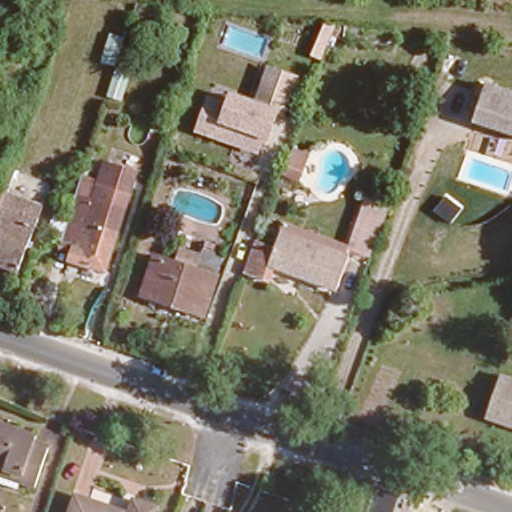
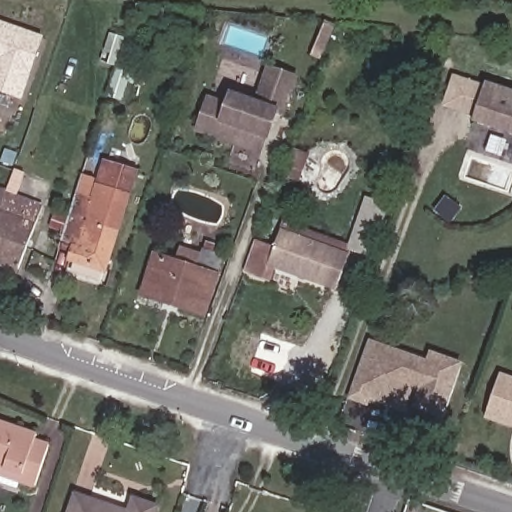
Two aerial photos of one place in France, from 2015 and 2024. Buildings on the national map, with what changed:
new [(45,36),(22,99),(0,91),(0,21),(45,36)]
unchanged [(290,115),(281,113),(271,141),(267,138),(261,153),(195,134),(209,95),(226,100),(230,92),(255,100),(267,66),(301,76),(290,115)]
unchanged [(486,82),(512,91),(512,134),(472,119),(486,82)]
unchanged [(71,211),(77,191),(93,194),(105,157),(134,166),(105,260),(72,251),(75,243),(62,239),(71,211)]
unchanged [(0,237),(0,192),(39,206),(22,245),(0,237)]
unchanged [(280,235),(283,222),(352,244),(370,199),(390,206),(372,259),(352,252),(347,262),(280,235)]
unchanged [(255,257),(259,246),(274,251),(280,235),(347,262),(336,294),(278,271),(272,285),(247,278),(255,257)]
unchanged [(22,245),(13,272),(0,267),(0,237),(22,245)]
unchanged [(225,254),(205,315),(144,296),(156,256),(199,268),(205,248),(225,254)]
new [(442,420),(410,409),(417,390),(413,389),(405,413),(371,401),(369,407),(346,399),(369,339),(426,359),(430,350),(463,361),(442,420)]
unchanged [(512,430),(484,421),(500,374),(512,378),(512,430)]
unchanged [(2,458),(0,458),(0,422),(34,433),(32,438),(44,442),(33,477),(19,472),(0,467),(0,465),(2,458)]
unchanged [(127,506),(134,492),(156,500),(152,512),(69,512),(76,490),(127,506)]

